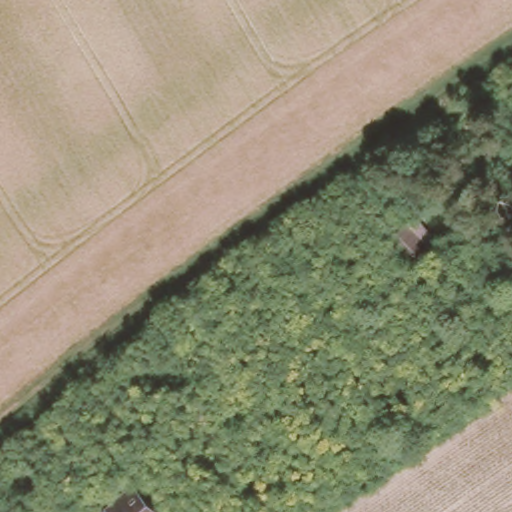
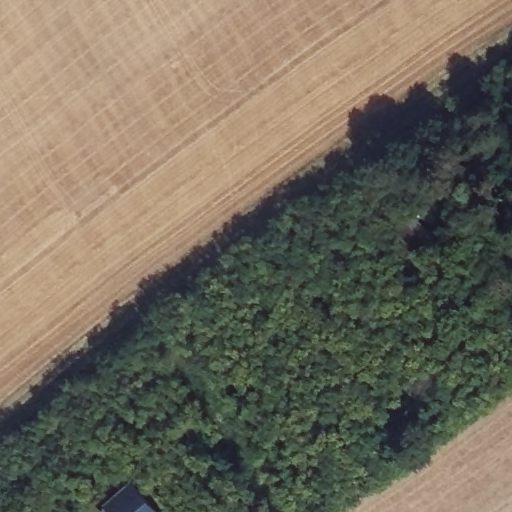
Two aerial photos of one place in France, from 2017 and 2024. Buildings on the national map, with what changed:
unchanged [(407,224),(428,246),(412,262),(390,240),(407,224)]
unchanged [(136,488),(157,512),(112,512),(111,511),(136,488)]

